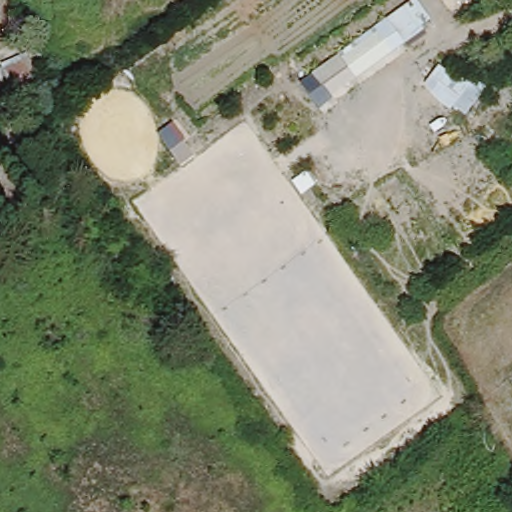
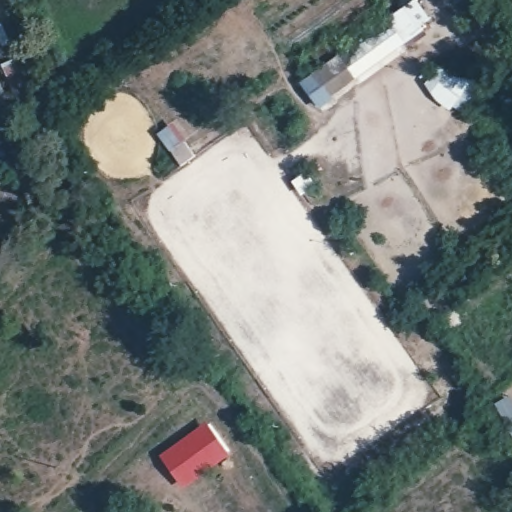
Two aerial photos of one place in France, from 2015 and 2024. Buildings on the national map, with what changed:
unchanged [(414,0),(416,0),(432,20),(318,109),(300,80),(414,0)]
unchanged [(47,80),(28,97),(13,73),(30,56),(47,80)]
unchanged [(455,105),(450,110),(425,84),(442,61),(465,80),(472,72),(488,85),(467,115),(455,105)]
new [(184,489),(160,456),(207,423),(230,455),(184,489)]

